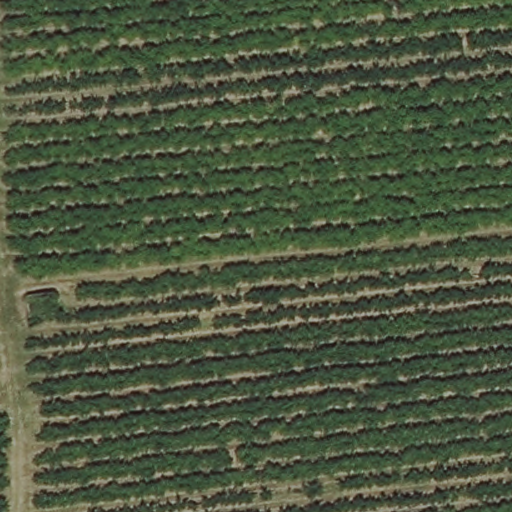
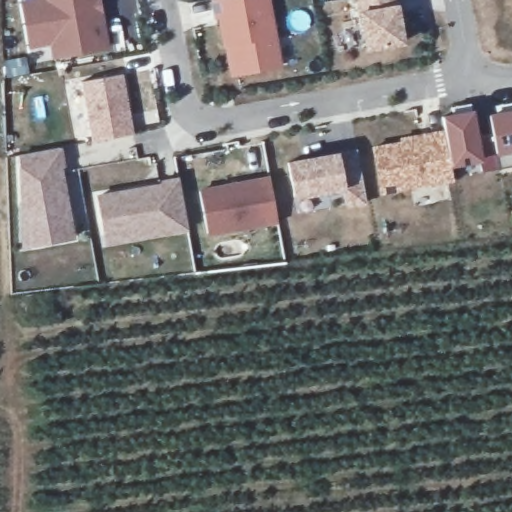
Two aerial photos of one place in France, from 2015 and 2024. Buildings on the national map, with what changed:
new [(55,52),(52,37),(40,39),(30,41),(23,0),(100,0),(108,43),(55,52)]
new [(225,40),(220,12),(217,12),(214,0),(269,0),(281,61),(237,69),(233,70),(227,40),(225,40)]
new [(367,44),(359,0),(397,0),(404,37),(367,44)]
new [(94,141),(83,81),(123,74),(134,133),(94,141)]
new [(435,112),(470,106),(474,128),(484,126),(482,106),(512,103),(512,145),(492,149),(495,165),(481,167),(480,155),(445,161),(439,130),(435,112)]
new [(380,195),(373,149),(404,145),(403,139),(439,130),(445,161),(448,180),(380,195)]
new [(357,146),(366,198),(347,201),(344,183),(294,192),(288,158),(357,146)]
new [(60,150),(71,235),(18,241),(15,155),(60,150)]
new [(209,236),(199,189),(269,176),(278,223),(209,236)]
new [(176,181),(182,229),(103,241),(96,194),(176,181)]
demolished [(60,312),(31,316),(28,290),(58,286),(60,312)]

